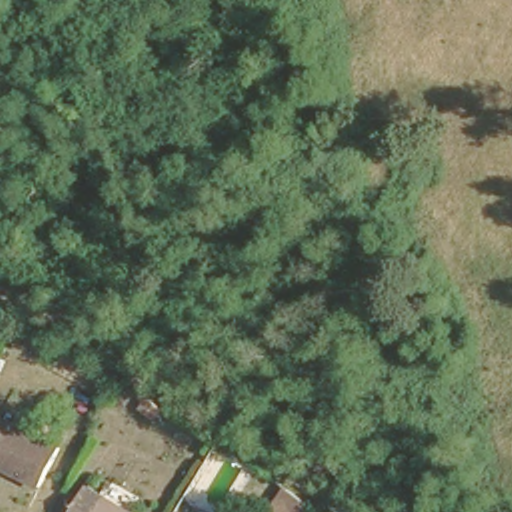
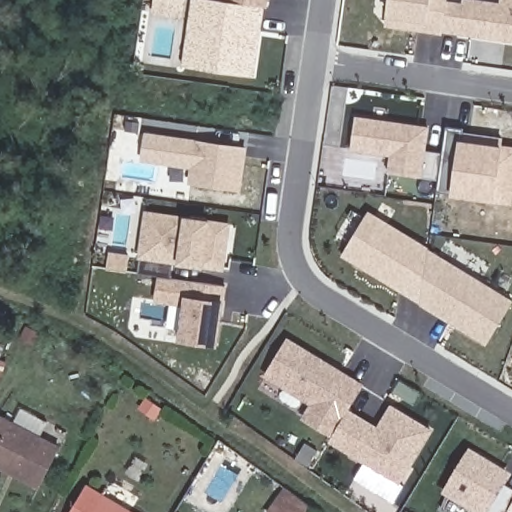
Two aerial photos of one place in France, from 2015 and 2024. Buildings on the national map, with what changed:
new [(191,0),(268,0),(267,7),(265,7),(254,76),(182,66),(191,0)]
new [(387,17),(390,0),(451,0),(461,1),(462,0),(482,0),(499,2),(499,0),(512,0),(512,43),(442,34),(442,35),(386,26),(387,17)]
new [(428,126),(426,150),(441,151),(445,126),(463,127),(463,134),(474,136),(473,142),(481,144),(483,137),(501,140),(501,146),(512,148),(512,178),(508,201),(494,199),(436,191),(438,180),(387,172),(390,155),(350,150),(355,115),(428,126)]
new [(247,146),(240,191),(188,185),(190,168),(139,161),(143,131),(247,146)]
new [(184,215),(211,220),(231,222),(224,271),(203,268),(177,265),(173,265),(171,276),(227,286),(224,301),(217,347),(178,341),(183,307),(153,302),(157,275),(137,271),(140,260),(137,259),(144,210),(184,215)]
new [(368,210),(512,299),(512,303),(486,345),(340,256),(368,210)]
new [(331,437),(300,419),(309,403),(262,376),(286,335),(364,383),(349,408),(376,425),(390,402),(433,430),(399,485),(328,441),(331,437)]
unchanged [(0,420),(3,413),(60,441),(41,479),(0,458),(0,420)]
new [(447,499),(441,495),(468,450),(512,476),(512,477),(506,487),(512,491),(512,512),(445,512),(441,510),(447,499)]
unchanged [(143,512),(67,512),(84,481),(143,512)]
unchanged [(286,491),(294,496),(300,500),(316,511),(316,512),(275,512),(275,510),(286,491)]

